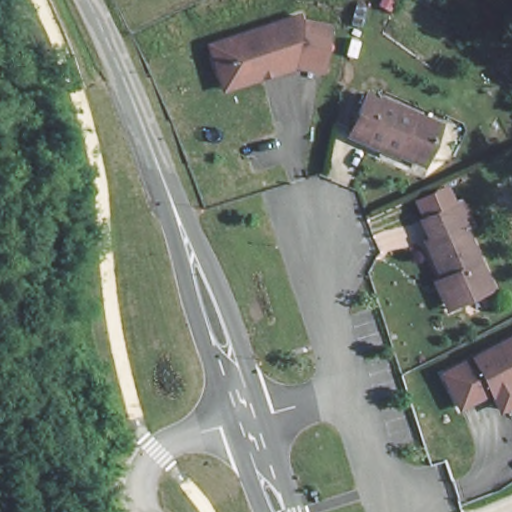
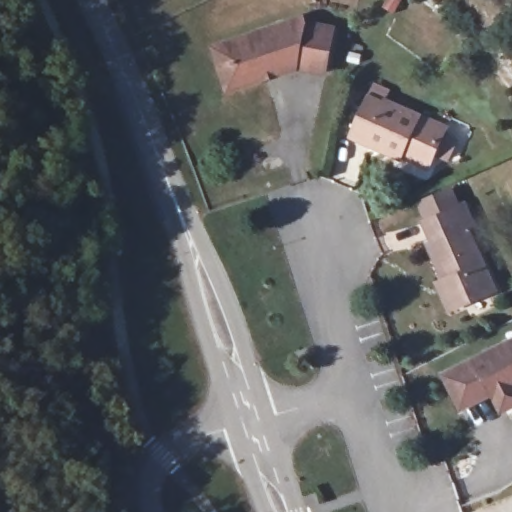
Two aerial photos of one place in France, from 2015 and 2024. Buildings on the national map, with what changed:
unchanged [(223,43),(234,40),(314,16),(316,21),(314,26),(342,32),(335,66),(308,60),(306,66),(285,72),(236,86),(223,43)]
unchanged [(402,159),(401,161),(368,147),(370,142),(354,135),(369,101),(385,108),(386,105),(446,131),(432,163),(429,170),(402,159)]
unchanged [(439,283),(446,280),(430,242),(434,240),(425,220),(445,212),(465,203),(474,225),(469,227),(496,290),(460,305),(451,309),(439,283)]
unchanged [(507,387),(467,408),(451,375),(512,343),(512,389),(507,387)]

